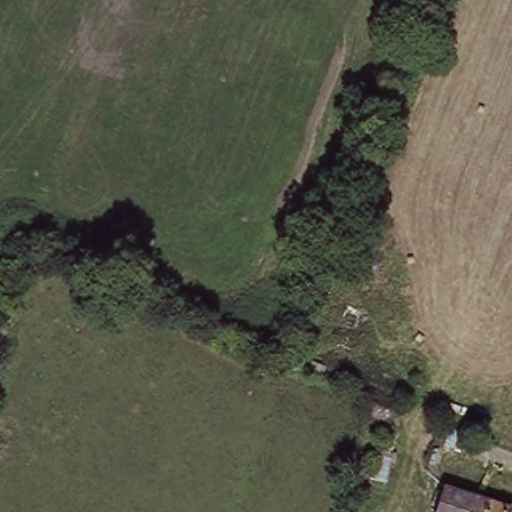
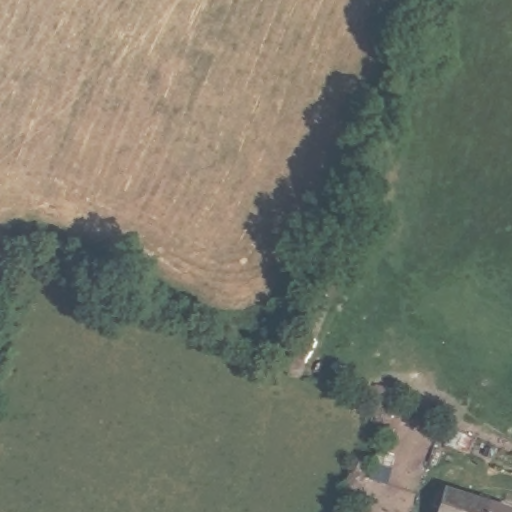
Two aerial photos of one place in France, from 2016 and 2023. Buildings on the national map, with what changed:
unchanged [(508,509),(507,512),(437,512),(445,488),(508,509)]

